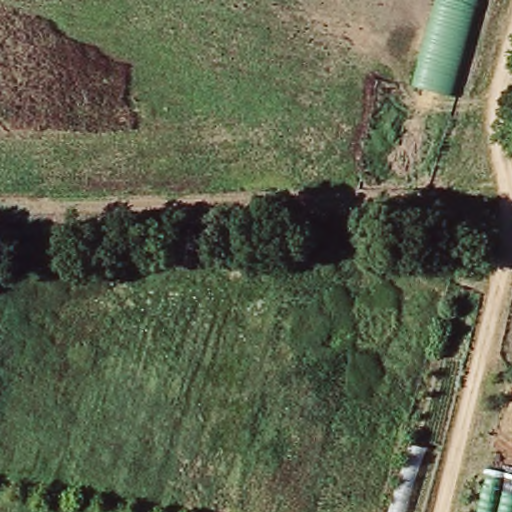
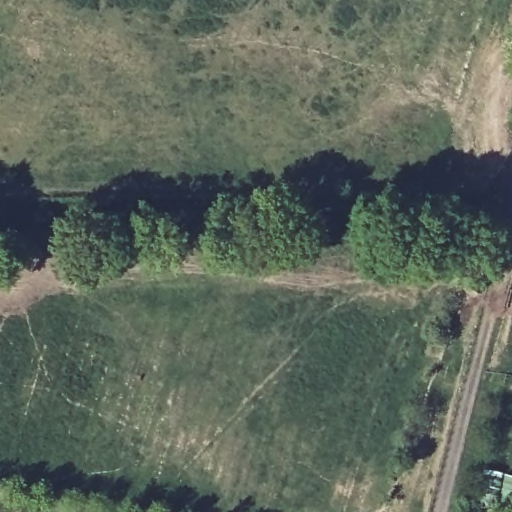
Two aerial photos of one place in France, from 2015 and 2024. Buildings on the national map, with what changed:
demolished [(479,0),(475,15),(432,2),(433,0),(479,0)]
demolished [(454,95),(411,85),(432,2),(475,15),(454,95)]
unchanged [(485,483),(512,492),(512,512),(478,512),(485,483)]

